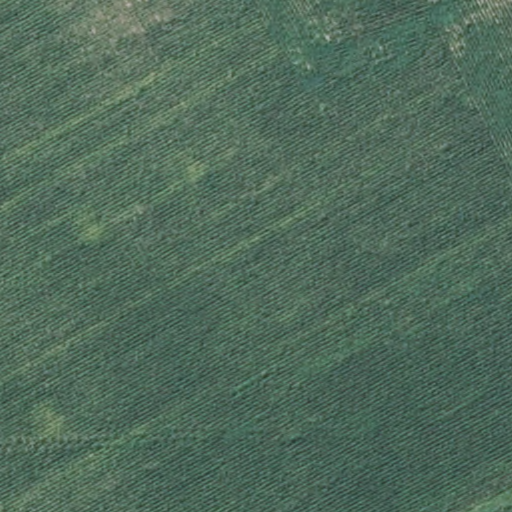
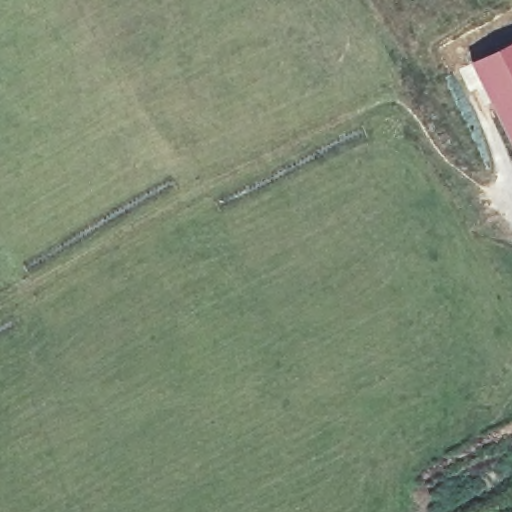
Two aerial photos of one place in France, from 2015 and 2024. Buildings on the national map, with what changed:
new [(512,43),(512,133),(477,60),(512,43)]

